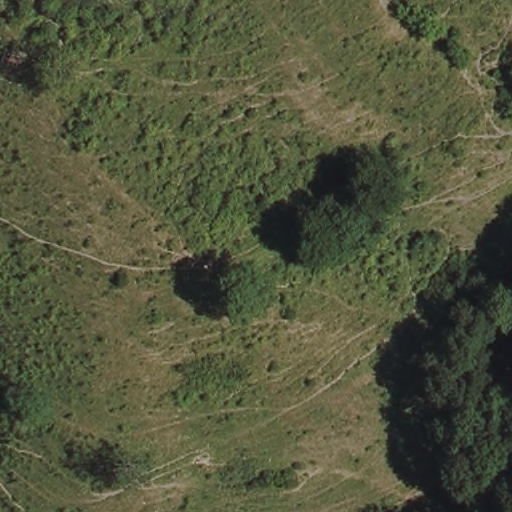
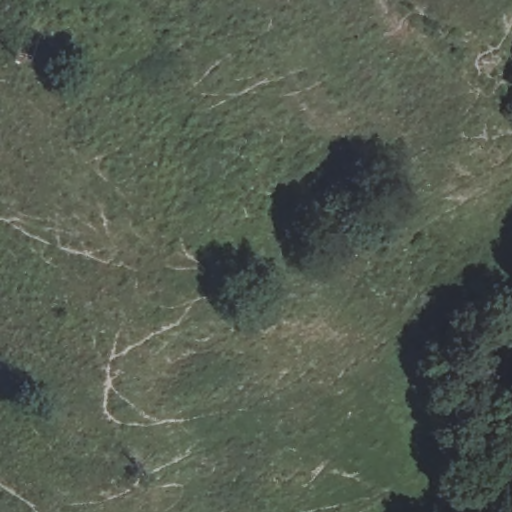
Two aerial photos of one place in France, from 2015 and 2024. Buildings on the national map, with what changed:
unchanged [(492,325),(510,304),(512,307),(512,327),(505,337),(492,325)]

